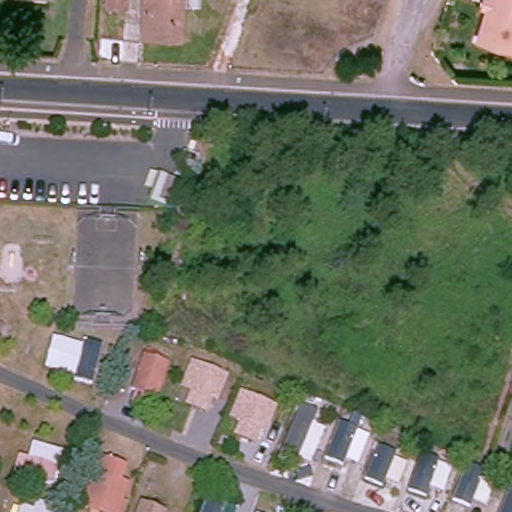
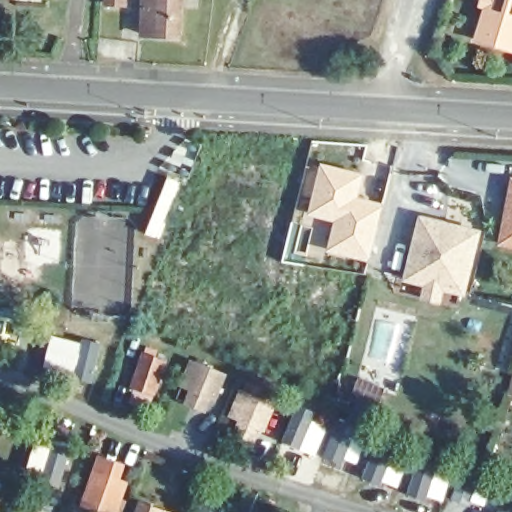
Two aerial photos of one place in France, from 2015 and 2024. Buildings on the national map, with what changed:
unchanged [(173,32),(136,31),(137,0),(174,0),(173,32)]
unchanged [(510,50),(471,35),(483,0),(512,0),(512,51),(510,50)]
new [(317,161),(364,171),(358,195),(383,202),(368,262),(324,252),(332,222),(304,215),(317,161)]
new [(509,175),(512,176),(512,249),(496,246),(509,175)]
new [(408,276),(421,225),(423,215),(434,218),(479,230),(464,290),(444,285),(441,299),(425,295),(429,281),(408,276)]
unchanged [(132,386),(145,353),(167,363),(154,394),(132,386)]
unchanged [(193,381),(199,364),(224,373),(209,406),(198,401),(187,396),(193,381)]
unchanged [(242,408),(248,392),(274,404),(259,438),(246,433),(234,428),(242,408)]
unchanged [(93,483),(96,473),(128,486),(124,495),(117,512),(96,512),(83,506),(93,483)]
unchanged [(164,512),(138,512),(142,502),(164,512)]

